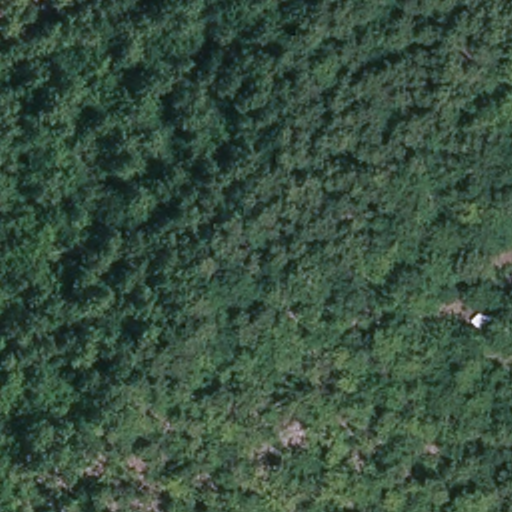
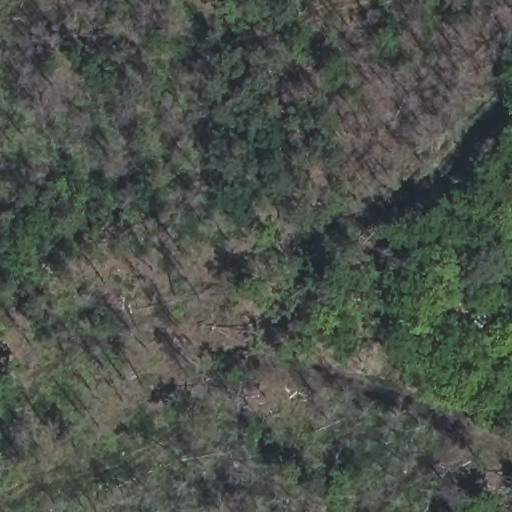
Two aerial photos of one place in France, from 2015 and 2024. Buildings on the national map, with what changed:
unchanged [(501,292),(512,281),(512,303),(501,292)]

